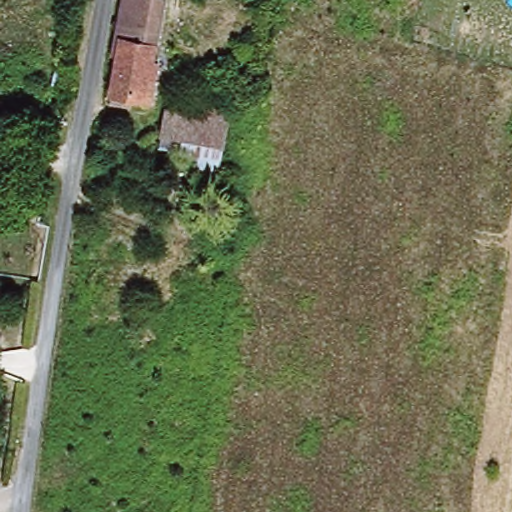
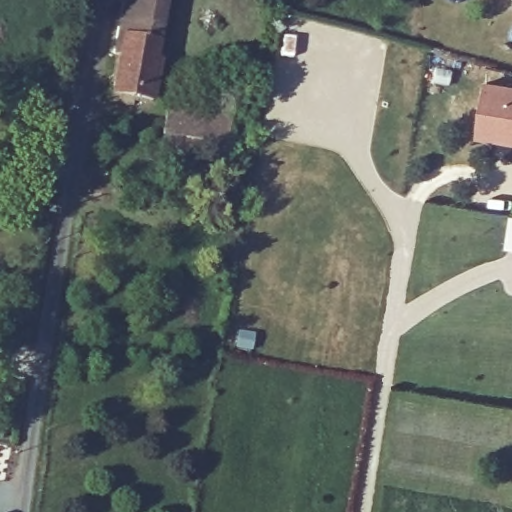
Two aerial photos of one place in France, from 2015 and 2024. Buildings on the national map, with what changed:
unchanged [(116,79),(120,65),(125,40),(113,36),(121,0),(163,0),(155,46),(167,49),(162,72),(159,89),(116,79)]
new [(487,81),(512,86),(512,140),(478,135),(481,120),(487,81)]
unchanged [(199,171),(198,164),(155,155),(162,108),(226,118),(216,174),(199,171)]

